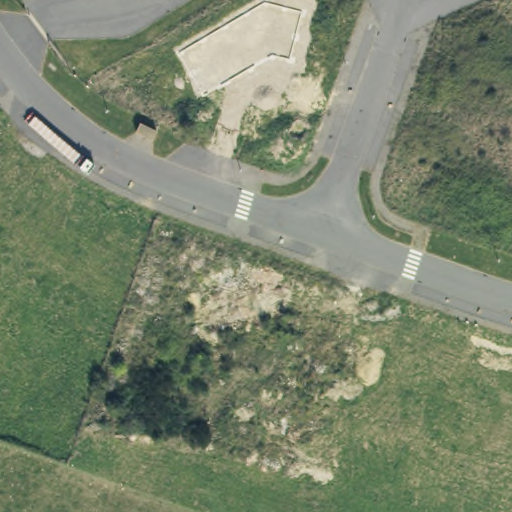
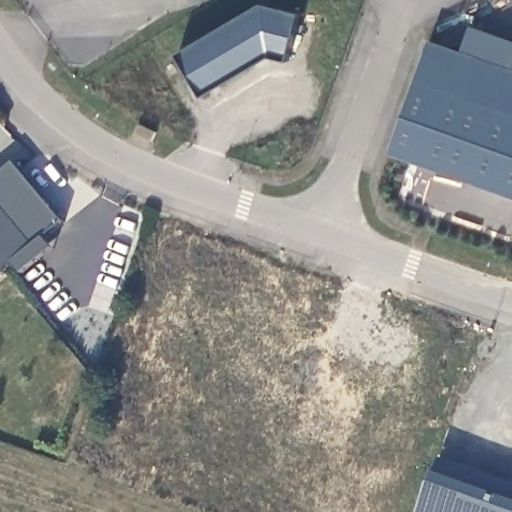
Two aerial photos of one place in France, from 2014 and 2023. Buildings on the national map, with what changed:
new [(265,4),(302,12),(290,59),(273,55),(205,94),(181,54),(265,4)]
new [(512,194),(391,152),(431,40),(512,69),(512,194)]
unchanged [(134,131),(139,122),(155,130),(151,140),(134,131)]
unchanged [(36,247),(0,277),(0,204),(36,247)]
new [(512,501),(512,512),(419,512),(433,473),(512,501)]

